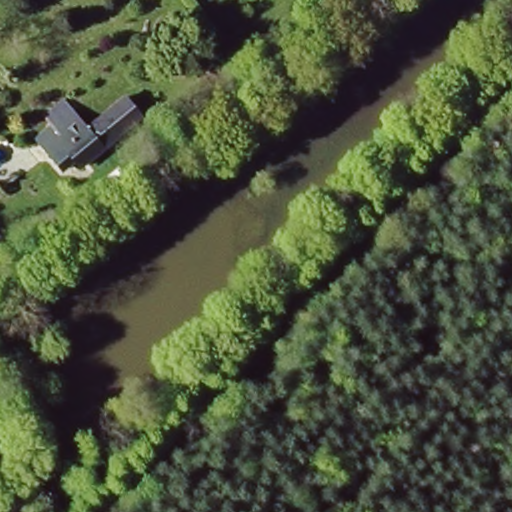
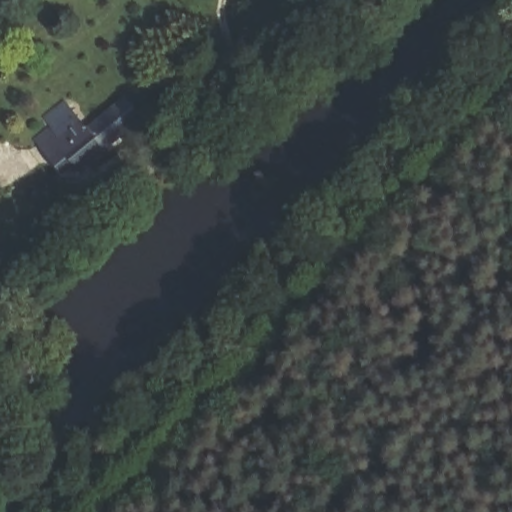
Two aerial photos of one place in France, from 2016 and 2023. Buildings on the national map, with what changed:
unchanged [(142,120),(80,171),(64,153),(52,163),(33,143),(70,109),(90,130),(124,100),(142,120)]

